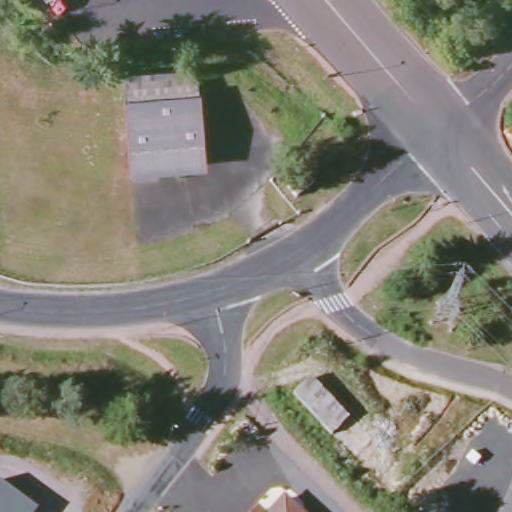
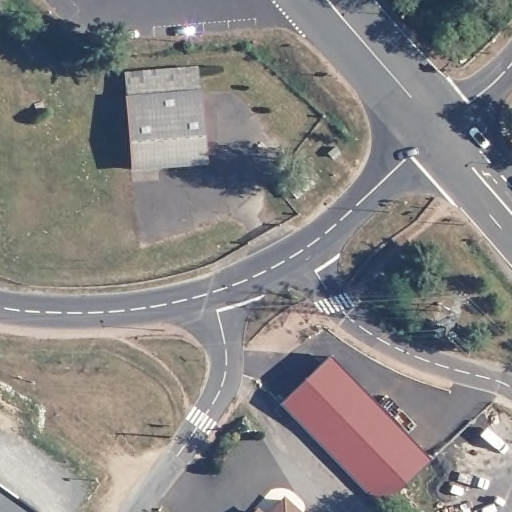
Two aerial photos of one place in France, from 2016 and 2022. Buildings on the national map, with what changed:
unchanged [(195,70),(196,94),(200,94),(206,164),(131,170),(124,75),(195,70)]
unchanged [(304,175),(314,185),(298,200),(287,189),(304,175)]
new [(330,357),(430,461),(380,508),(280,405),(330,357)]
demolished [(348,422),(352,418),(394,463),(376,481),(295,397),(310,381),(348,422)]
unchanged [(0,489),(33,512),(0,512),(0,489)]
unchanged [(294,512),(277,512),(285,504),(294,512)]

